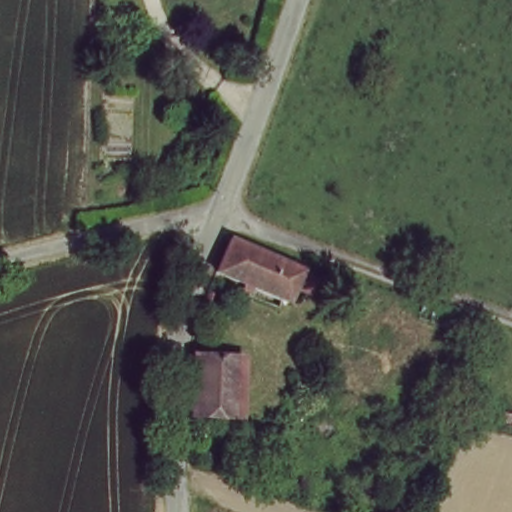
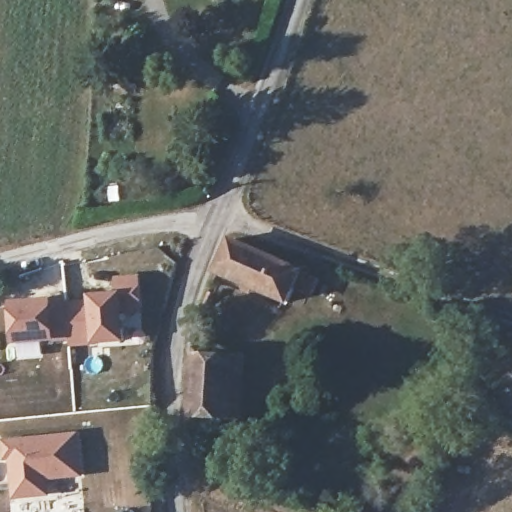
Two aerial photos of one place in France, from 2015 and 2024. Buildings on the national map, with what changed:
unchanged [(227,249),(304,275),(290,307),(217,280),(227,249)]
new [(124,313),(127,342),(93,345),(71,346),(71,340),(57,341),(41,342),(43,356),(20,358),(18,346),(15,345),(12,301),(51,299),(67,298),(68,305),(91,302),(90,296),(117,293),(116,278),(140,275),(143,311),(124,313)]
unchanged [(242,421),(230,421),(193,421),(192,359),(232,360),(246,361),(242,421)]
new [(48,480),(50,496),(15,500),(9,460),(5,461),(3,441),(80,433),(84,476),(48,480)]

